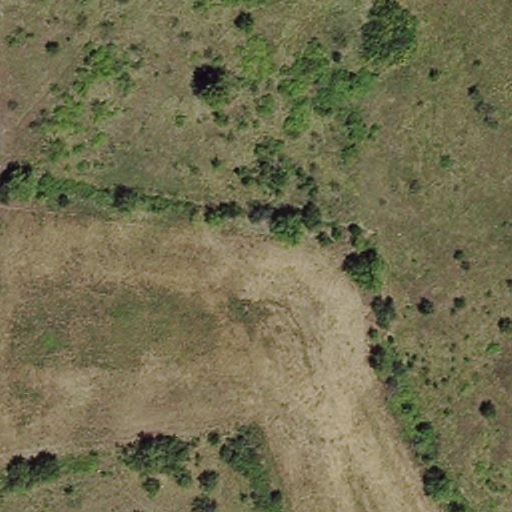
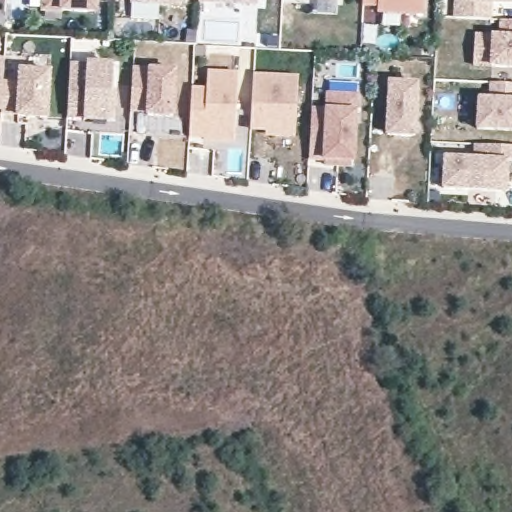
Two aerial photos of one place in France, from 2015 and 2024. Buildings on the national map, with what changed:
new [(61,12),(41,11),(41,0),(98,0),(98,14),(61,12)]
new [(181,3),(130,0),(181,0),(181,3)]
new [(199,0),(257,0),(257,3),(199,0)]
new [(362,0),(424,0),(423,16),(377,13),(377,7),(362,6),(362,0)]
new [(508,4),(490,3),(489,20),(455,18),(455,0),(508,0),(508,4)]
new [(475,35),(491,36),(492,20),(512,21),(512,67),(473,65),(475,35)]
new [(3,72),(1,113),(0,113),(0,58),(4,59),(3,72)]
new [(112,123),(85,122),(67,119),(70,63),(86,61),(113,64),(112,123)]
new [(132,70),(175,72),(172,117),(147,116),(148,112),(130,111),(132,70)]
new [(3,72),(46,75),(43,120),(18,118),(19,114),(1,113),(3,72)]
new [(191,89),(206,90),(207,73),(237,74),(233,139),(203,138),(203,135),(189,134),(191,89)]
new [(253,76),(298,78),(295,135),(273,134),(256,126),(250,126),(253,76)]
new [(479,98),(490,99),(490,83),(512,84),(512,130),(477,128),(479,98)]
new [(414,134),(385,132),(389,84),(417,86),(414,134)]
new [(353,168),(323,166),(323,161),(309,161),(312,107),(325,108),(326,92),(358,95),(358,112),(355,164),(353,168)]
new [(495,191),(443,188),(445,158),(475,159),(475,145),(512,146),(512,161),(507,161),(506,173),(505,192),(495,191)]

